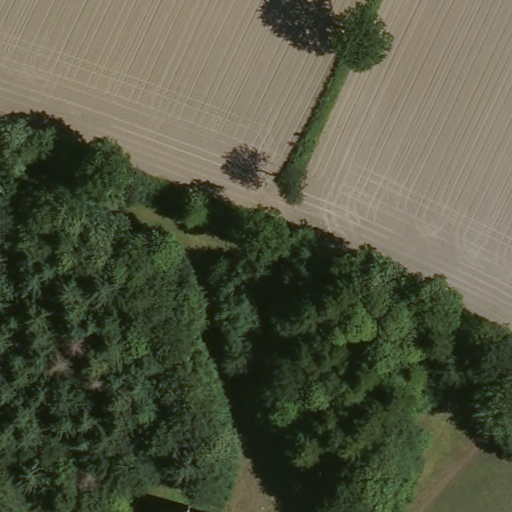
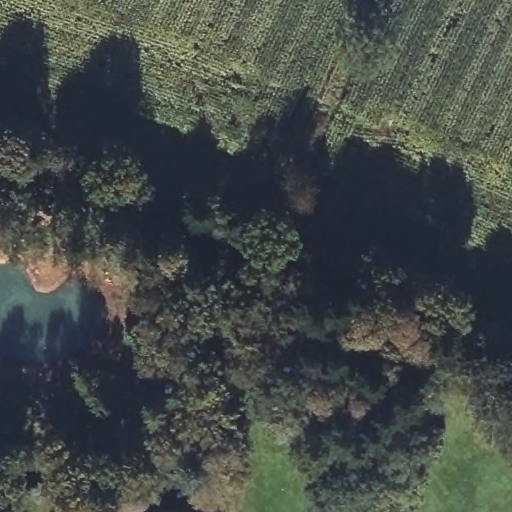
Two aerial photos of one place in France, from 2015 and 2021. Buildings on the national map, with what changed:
unchanged [(159,506),(200,502),(200,512),(160,512),(159,506)]

